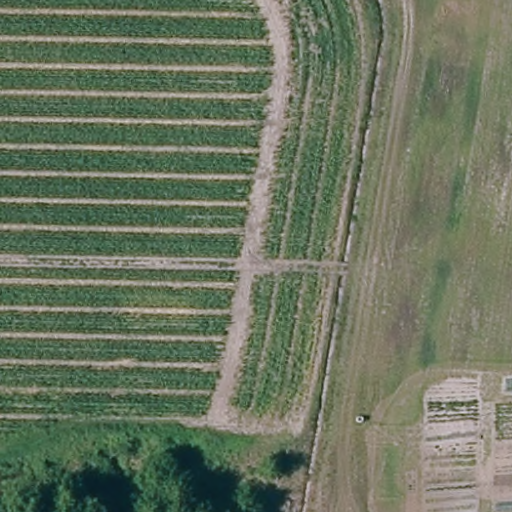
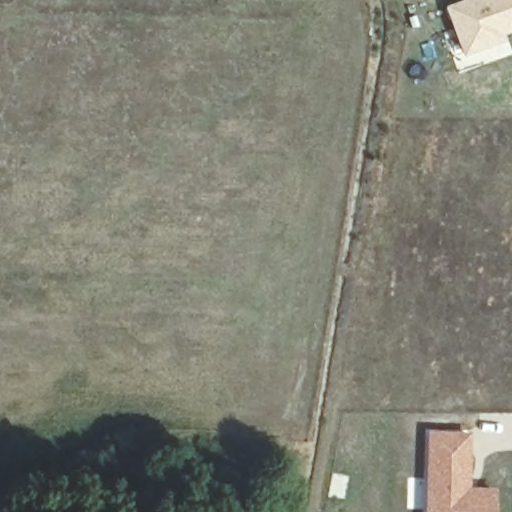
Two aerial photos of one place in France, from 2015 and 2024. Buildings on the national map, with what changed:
new [(512,33),(506,35),(508,41),(463,57),(443,5),(459,0),(512,0),(512,33)]
new [(423,479),(427,429),(471,431),(470,485),(497,487),(494,512),(422,512),(422,509),(407,508),(408,478),(423,479)]

